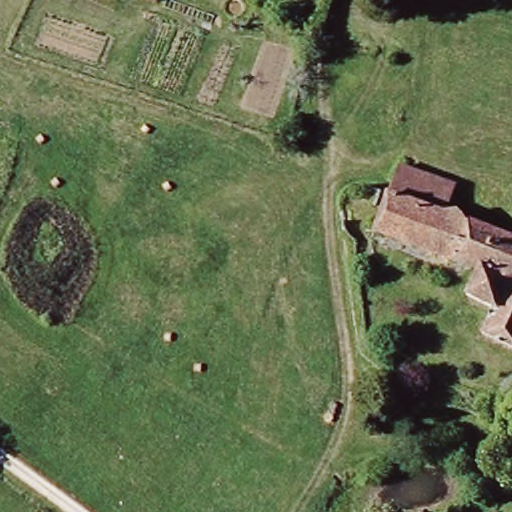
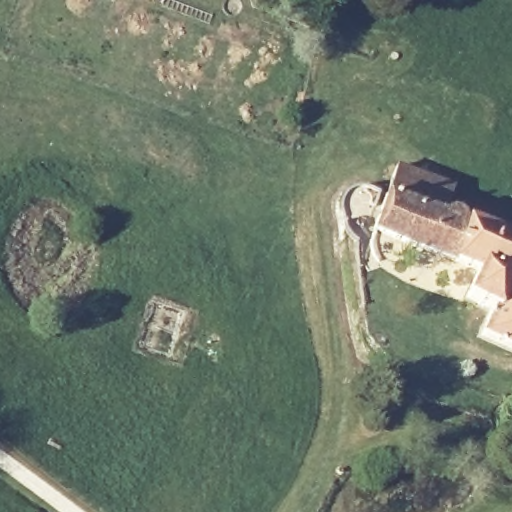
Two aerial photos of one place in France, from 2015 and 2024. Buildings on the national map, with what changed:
unchanged [(148,0),(155,0),(154,2),(148,0)]
unchanged [(456,207),(471,222),(512,237),(512,350),(482,336),(494,310),(469,298),(481,272),(377,235),(391,191),(395,191),(402,164),(460,185),(456,193),(461,198),(456,207)]

